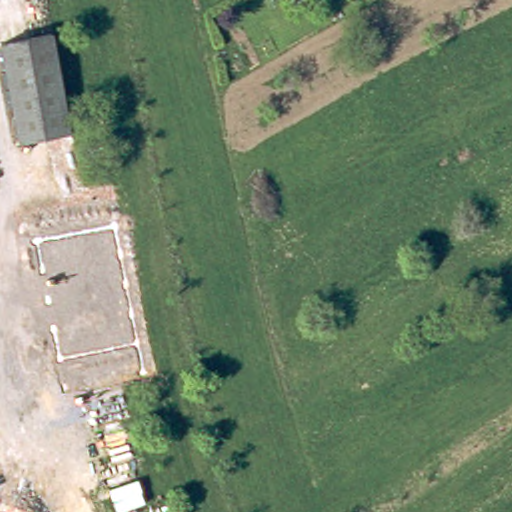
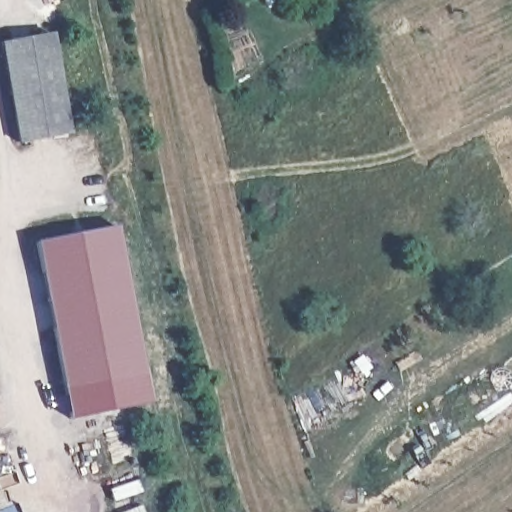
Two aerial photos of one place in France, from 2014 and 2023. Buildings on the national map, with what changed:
unchanged [(65,128),(15,138),(0,60),(0,38),(47,29),(65,128)]
new [(144,372),(64,389),(34,243),(116,226),(144,372)]

